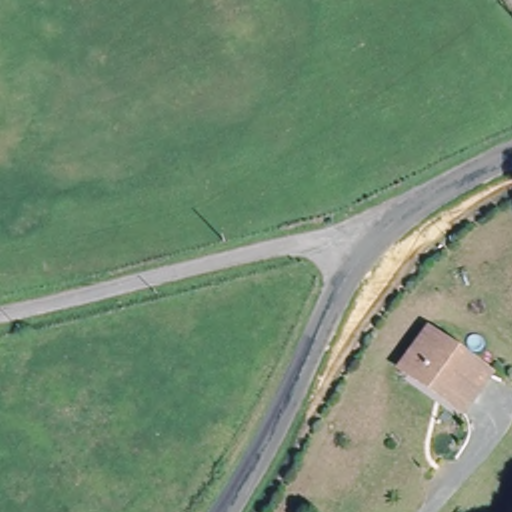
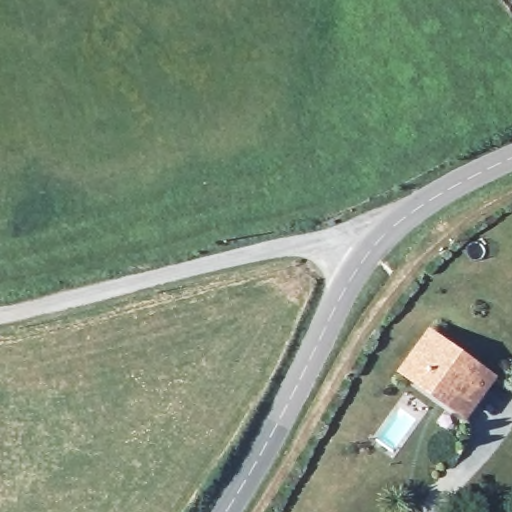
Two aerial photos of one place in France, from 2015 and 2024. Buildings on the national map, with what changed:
unchanged [(401,368),(429,329),(444,339),(490,374),(462,413),(443,399),(415,378),(401,368)]

